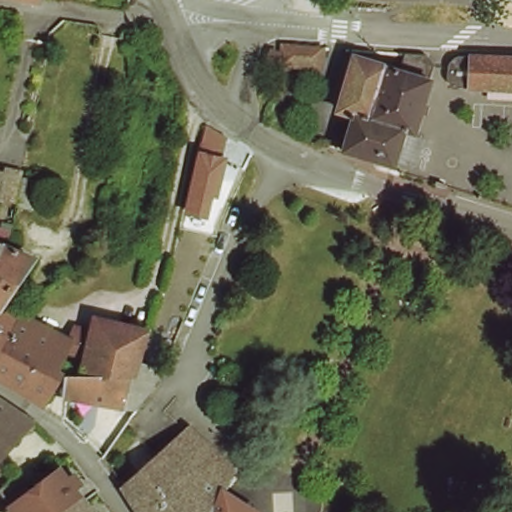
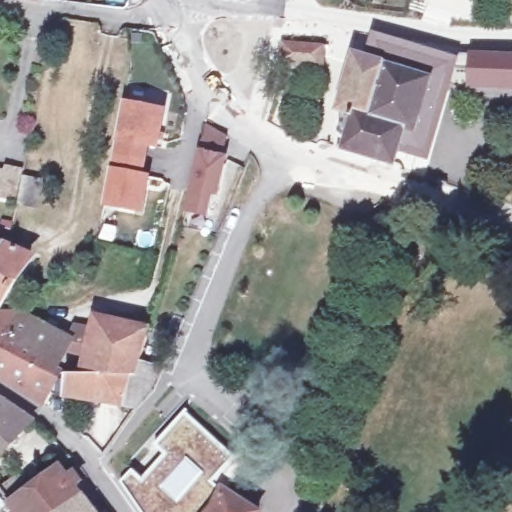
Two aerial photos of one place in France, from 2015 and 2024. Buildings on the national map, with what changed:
unchanged [(298,41),(328,44),(326,61),(284,59),(286,40),(298,41)]
unchanged [(345,145),(356,110),(342,106),(359,54),(403,68),(408,49),(426,50),(433,50),(437,53),(440,57),(441,61),(440,65),(436,78),(441,79),(424,131),(413,128),(401,164),(345,145)]
unchanged [(459,61),(462,58),(468,56),(512,58),(512,86),(479,84),(466,84),(462,81),(458,78),(456,74),(454,69),(456,65),(459,61)]
new [(165,109),(158,149),(146,147),(141,172),(149,173),(141,215),(102,207),(121,100),(165,109)]
unchanged [(227,138),(223,156),(228,158),(218,199),(213,197),(208,219),(184,214),(199,150),(206,126),(227,138)]
unchanged [(42,209),(22,206),(23,204),(0,200),(0,170),(11,172),(11,166),(29,169),(28,176),(47,179),(42,209)]
unchanged [(31,243),(0,300),(0,238),(31,243)]
unchanged [(20,320),(22,320),(7,346),(0,358),(0,319),(20,320)]
unchanged [(139,369),(137,382),(128,382),(87,378),(90,359),(66,354),(55,372),(7,346),(22,320),(71,344),(78,332),(95,334),(96,327),(146,336),(139,369)]
unchanged [(0,379),(0,358),(7,346),(55,372),(62,376),(44,406),(0,379)]
unchanged [(148,404),(138,422),(69,397),(71,377),(87,378),(128,382),(137,382),(139,369),(163,370),(148,404)]
unchanged [(0,468),(0,395),(38,421),(0,468)]
unchanged [(154,461),(156,459),(186,433),(191,429),(227,462),(236,471),(233,476),(231,483),(227,489),(261,512),(145,512),(126,486),(154,461)]
unchanged [(72,508),(66,512),(24,512),(13,497),(3,484),(21,471),(31,484),(33,483),(44,475),(49,471),(55,467),(60,463),(63,461),(71,472),(72,472),(73,471),(74,471),(75,471),(76,471),(77,471),(78,471),(79,471),(80,472),(81,472),(81,473),(82,473),(82,474),(83,474),(83,475),(83,476),(84,477),(84,478),(84,479),(84,480),(83,481),(83,482),(83,483),(82,484),(81,484),(81,485),(88,496),(78,504),(72,508)]
unchanged [(72,508),(78,504),(88,496),(100,512),(66,512),(72,508)]

